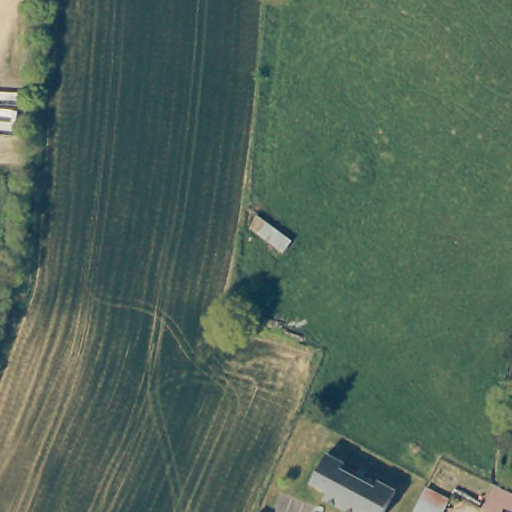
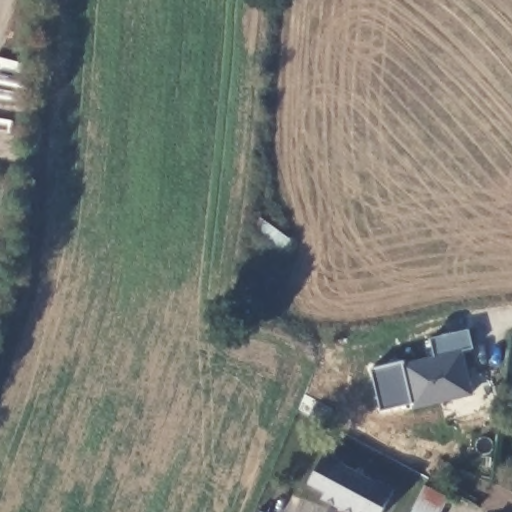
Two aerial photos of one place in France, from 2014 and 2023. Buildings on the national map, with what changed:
new [(434,356),(430,338),(469,328),(474,348),(463,350),(473,392),(441,400),(442,402),(414,408),(403,363),(434,356)]
unchanged [(362,512),(349,512),(323,498),(327,492),(310,482),(326,452),(395,490),(384,512),(363,512),(362,511),(362,512)]
unchanged [(426,491),(448,504),(444,512),(415,512),(426,491)]

